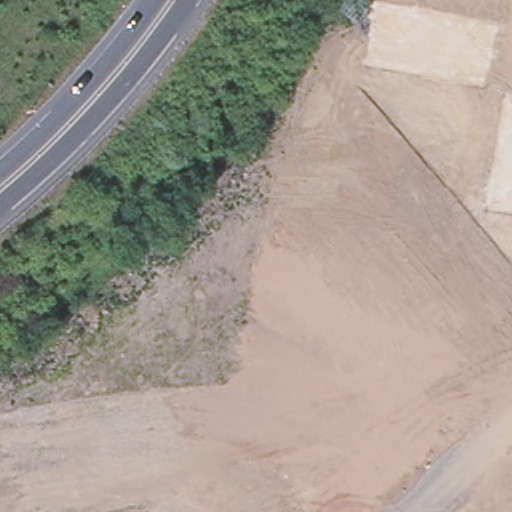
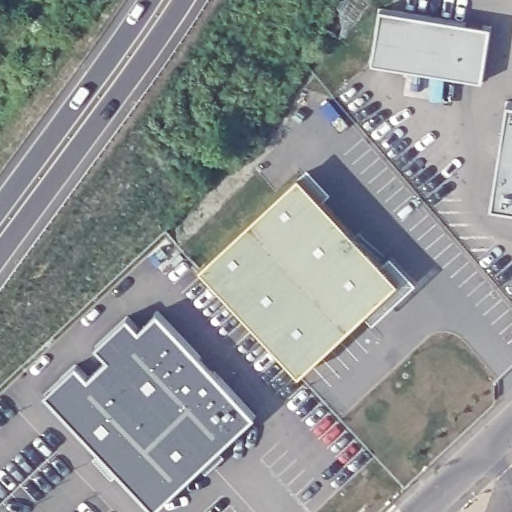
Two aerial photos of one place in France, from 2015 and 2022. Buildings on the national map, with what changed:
new [(379,8),(490,26),(483,80),(372,61),(379,8)]
unchanged [(512,101),(512,207),(492,203),(507,100),(512,101)]
new [(300,175),(400,281),(301,374),(201,268),(300,175)]
new [(47,393),(77,364),(89,376),(109,358),(96,344),(128,316),(140,328),(159,311),(255,415),(155,507),(47,393)]

